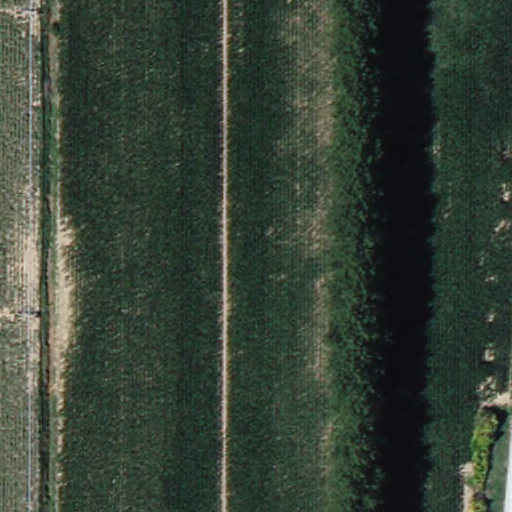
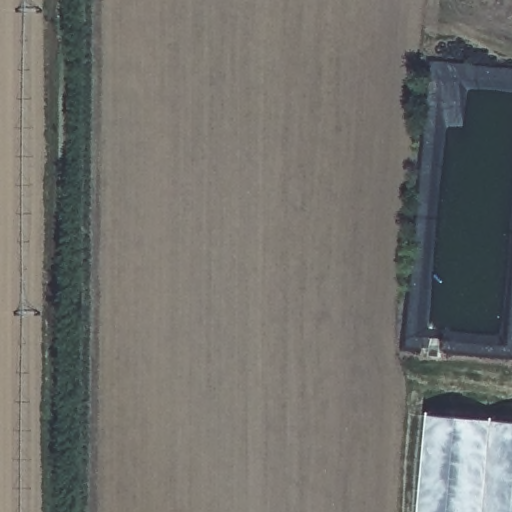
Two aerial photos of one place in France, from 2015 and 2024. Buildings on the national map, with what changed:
new [(506,424),(498,512),(423,512),(432,413),(506,424)]
unchanged [(498,512),(499,496),(506,424),(512,424),(512,512),(498,512)]

